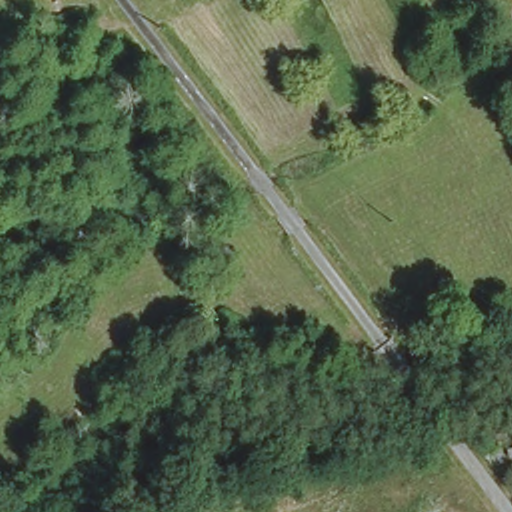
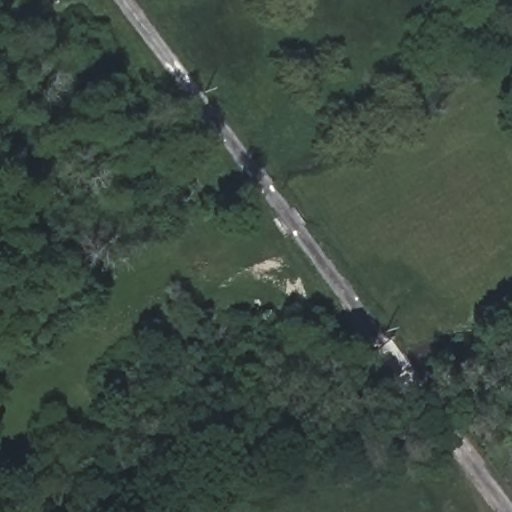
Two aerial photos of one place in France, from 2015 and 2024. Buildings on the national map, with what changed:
unchanged [(511,467),(509,430),(512,429),(512,467),(511,467)]

